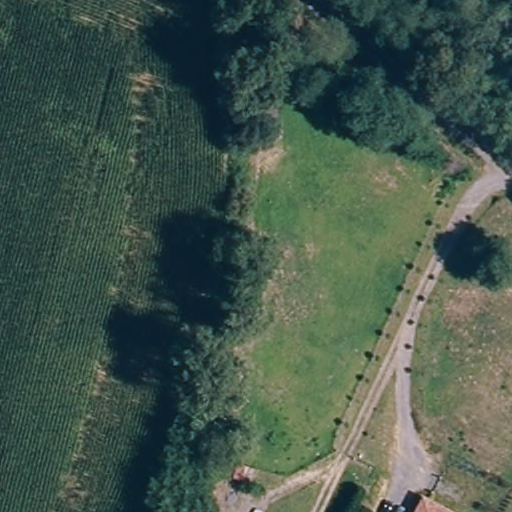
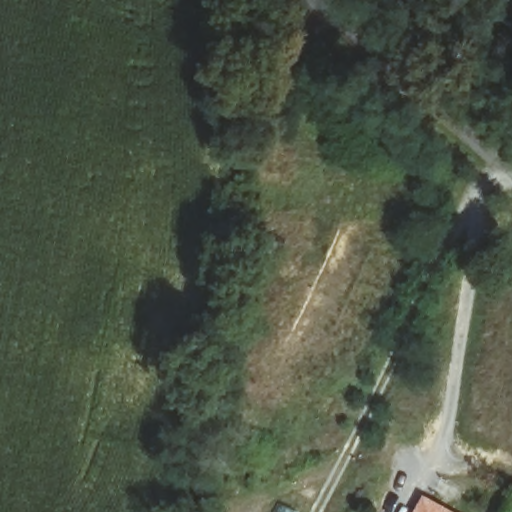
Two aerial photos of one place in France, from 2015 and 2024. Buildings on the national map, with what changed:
unchanged [(426,494),(460,512),(417,512),(426,494)]

